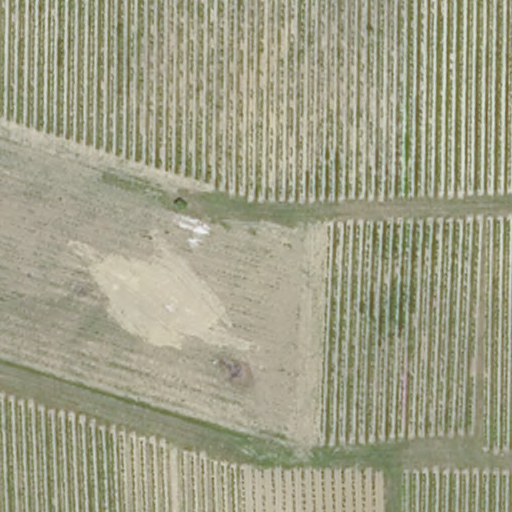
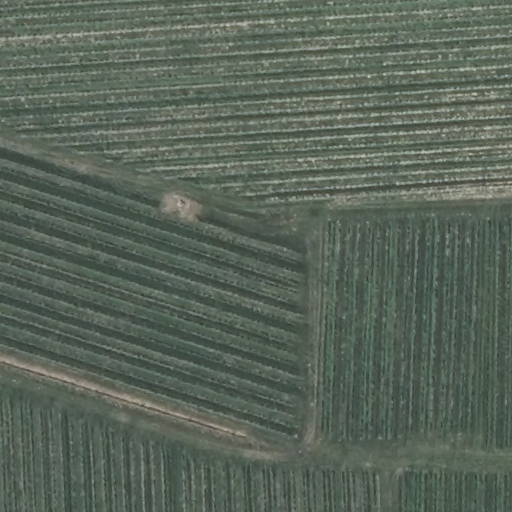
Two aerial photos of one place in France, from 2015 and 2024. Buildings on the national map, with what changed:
[]

